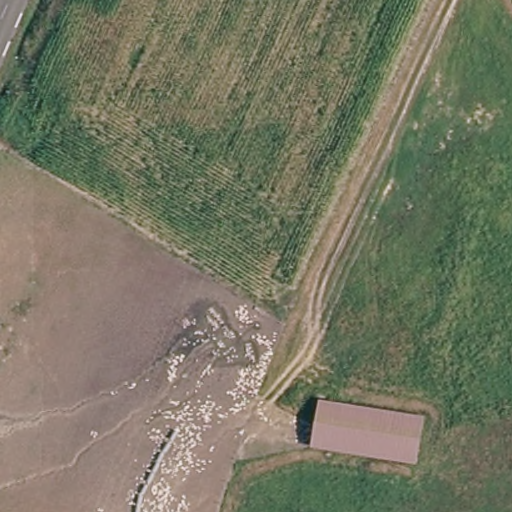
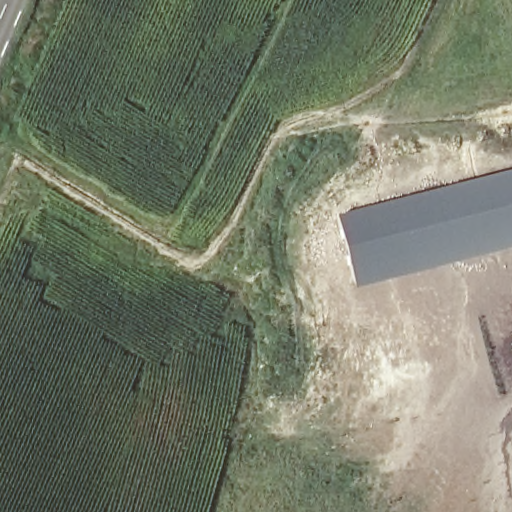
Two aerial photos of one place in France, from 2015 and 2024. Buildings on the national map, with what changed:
new [(512,247),(488,254),(353,288),(335,214),(512,168),(512,247)]
unchanged [(319,399),(425,415),(417,466),(310,449),(319,399)]

